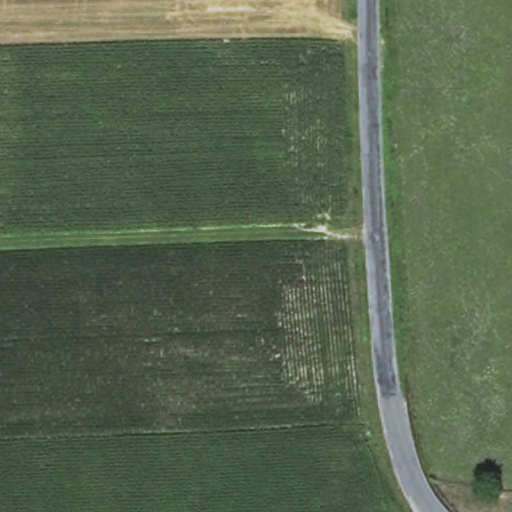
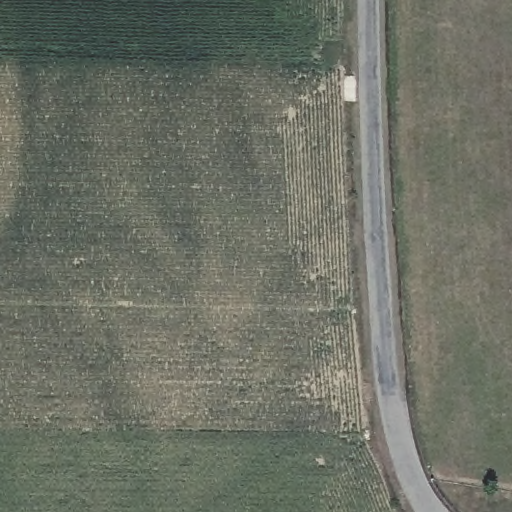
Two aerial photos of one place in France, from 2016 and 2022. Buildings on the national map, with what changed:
[]

